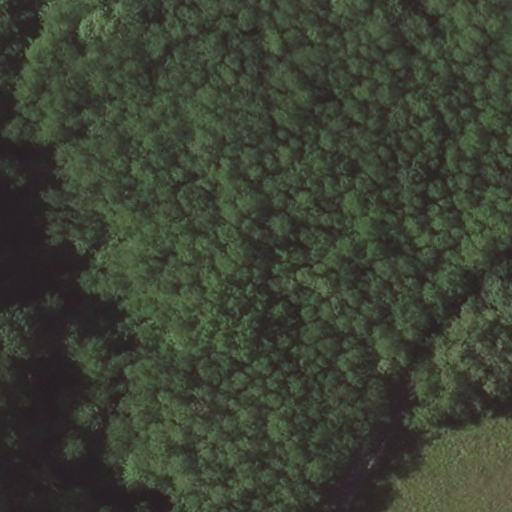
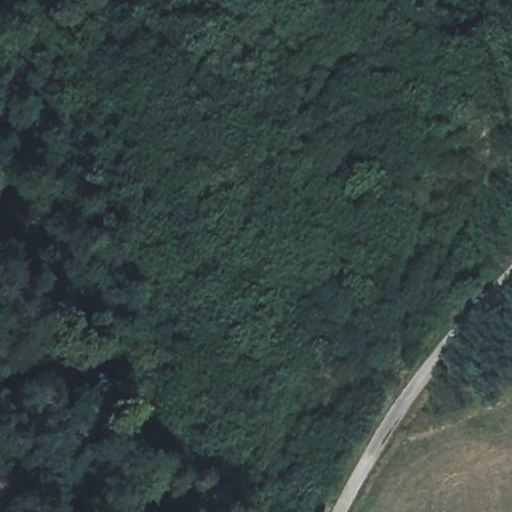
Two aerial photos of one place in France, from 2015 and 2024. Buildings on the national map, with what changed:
[]

